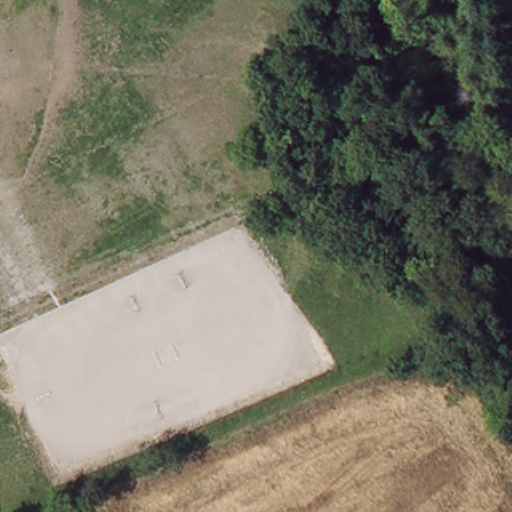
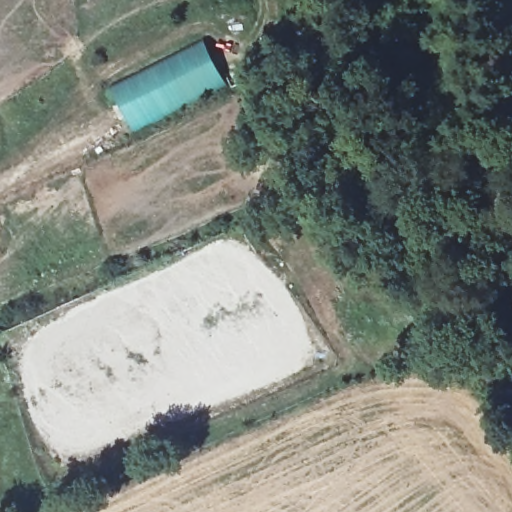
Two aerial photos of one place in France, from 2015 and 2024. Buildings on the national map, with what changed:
new [(130,127),(112,88),(205,42),(225,85),(130,127)]

